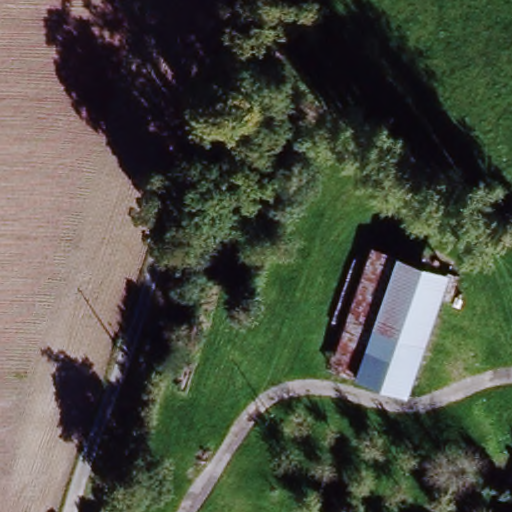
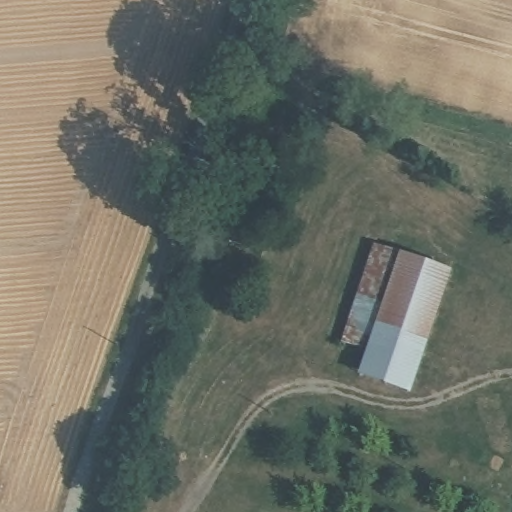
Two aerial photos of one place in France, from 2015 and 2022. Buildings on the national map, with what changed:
unchanged [(397,252),(448,273),(410,387),(358,373),(316,362),(358,237),(397,252)]

